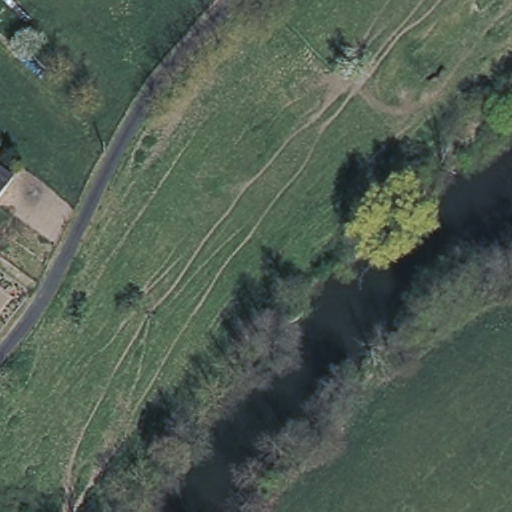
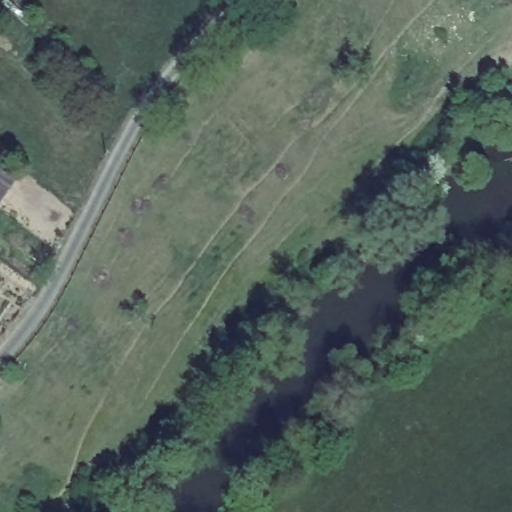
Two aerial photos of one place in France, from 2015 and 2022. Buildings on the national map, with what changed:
unchanged [(14,183),(0,203),(0,173),(14,183)]

